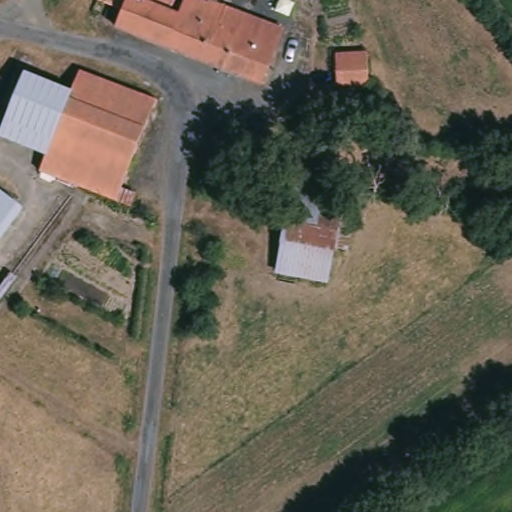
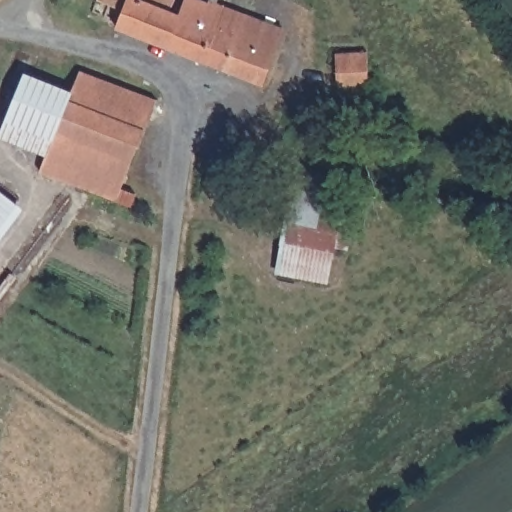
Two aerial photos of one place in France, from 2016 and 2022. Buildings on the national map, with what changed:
unchanged [(113,0),(164,0),(172,4),(167,14),(195,26),(204,5),(235,17),(233,22),(227,39),(240,45),(234,62),(230,76),(116,30),(121,19),(107,10),(113,0)]
unchanged [(234,62),(240,45),(227,39),(233,22),(235,17),(243,21),(251,2),(287,17),(260,88),(230,76),(234,62)]
unchanged [(66,95),(77,71),(156,110),(115,189),(51,160),(38,154),(66,95)]
unchanged [(21,75),(66,95),(38,154),(26,149),(0,139),(0,127),(7,111),(21,75)]
unchanged [(83,193),(65,185),(31,169),(38,154),(51,160),(115,189),(110,199),(107,205),(83,193)]
unchanged [(343,198),(324,288),(274,278),(293,188),(343,198)]
unchanged [(16,205),(0,226),(0,193),(16,205)]

